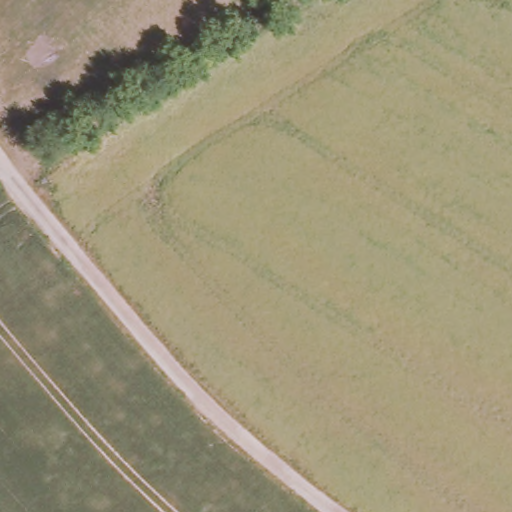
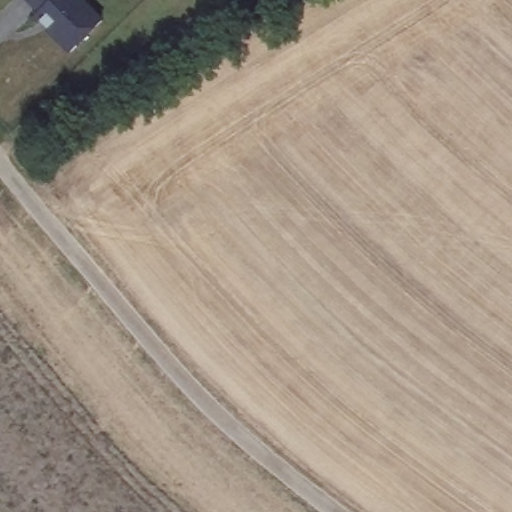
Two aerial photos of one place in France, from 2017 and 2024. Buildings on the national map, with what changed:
new [(98,18),(67,50),(31,12),(37,7),(29,0),(79,0),(98,18)]

